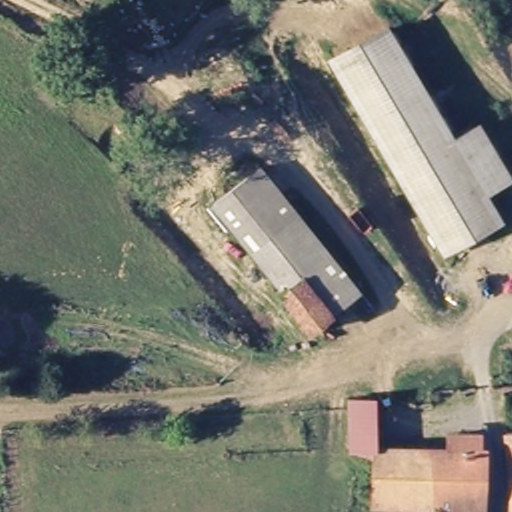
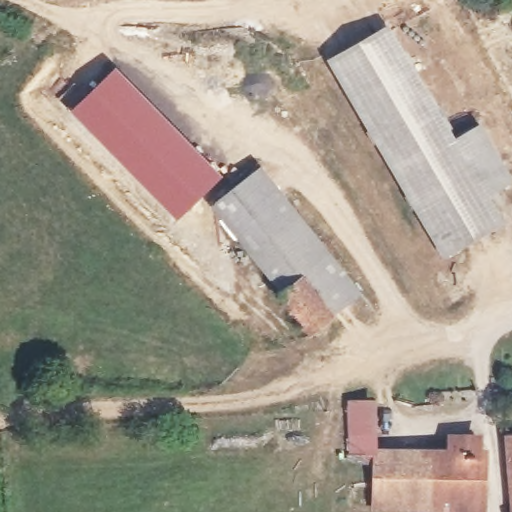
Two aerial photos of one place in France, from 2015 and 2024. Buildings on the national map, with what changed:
unchanged [(442,248),(331,59),(392,23),(457,131),(483,118),(512,163),(512,173),(487,189),(502,216),(442,248)]
new [(116,64),(223,175),(177,220),(69,111),(116,64)]
unchanged [(264,164),(295,207),(298,211),(248,245),(215,199),(252,170),(264,164)]
unchanged [(275,295),(280,289),(248,245),(298,211),(361,294),(304,334),(275,295)]
unchanged [(401,451),(378,450),(359,449),(358,409),(358,400),(400,401),(401,406),(401,451)]
unchanged [(451,509),(377,508),(378,450),(401,451),(451,450),(450,432),(477,431),(478,451),(484,450),(486,507),(490,508),(490,512),(451,512),(451,509)]

